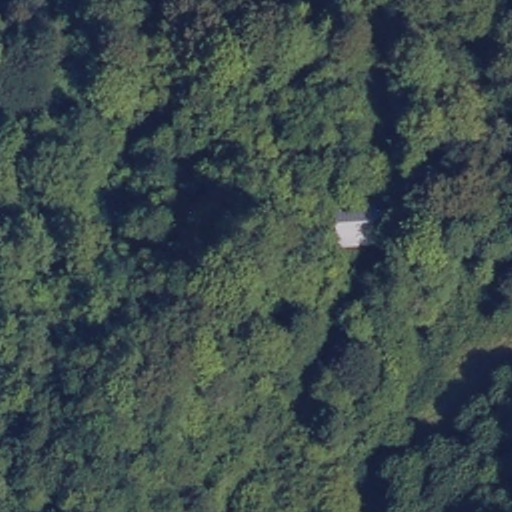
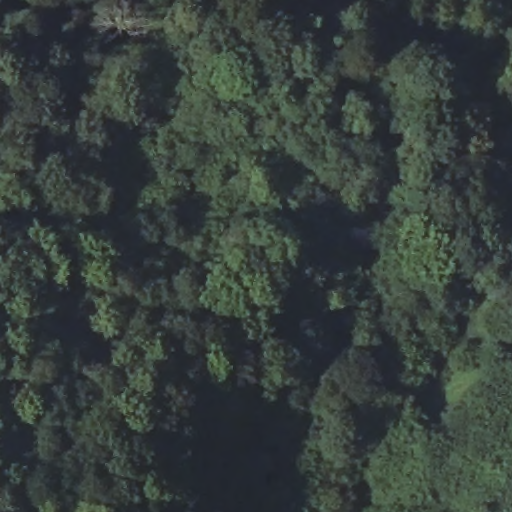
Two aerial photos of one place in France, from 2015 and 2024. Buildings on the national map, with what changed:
unchanged [(402,243),(337,246),(335,195),(399,194),(402,243)]

